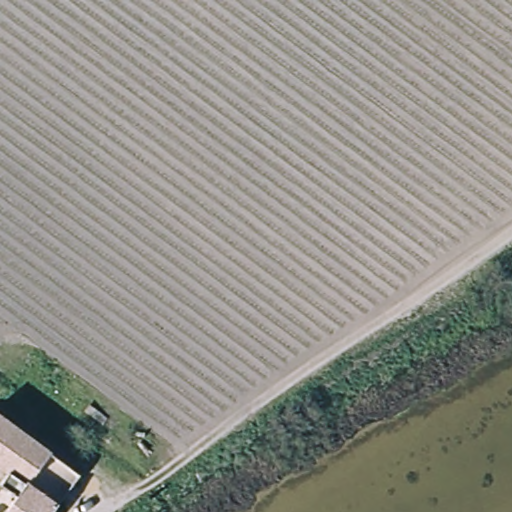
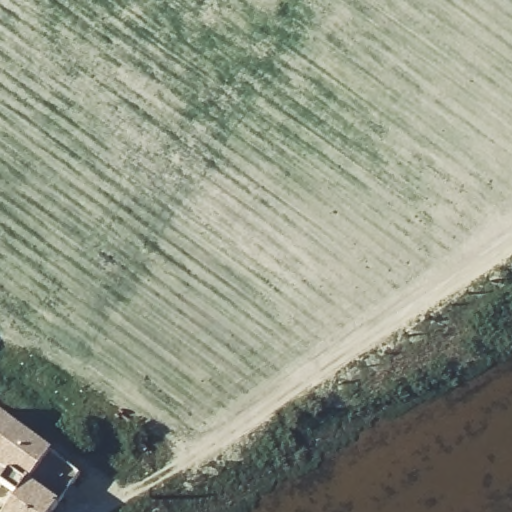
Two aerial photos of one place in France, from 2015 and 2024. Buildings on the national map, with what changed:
unchanged [(12,476),(0,468),(0,411),(81,473),(58,506),(12,476)]
unchanged [(15,500),(3,490),(12,476),(58,506),(54,512),(7,512),(15,500)]

